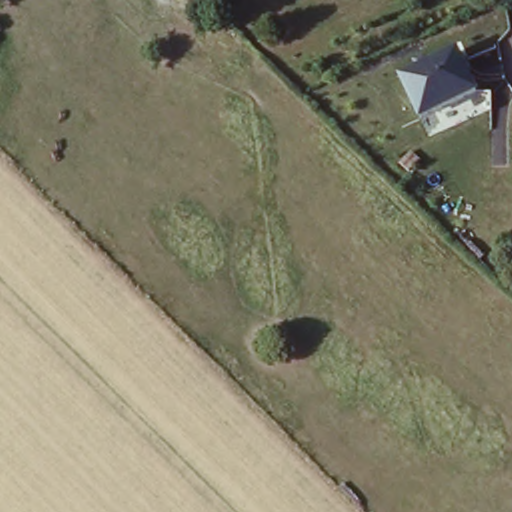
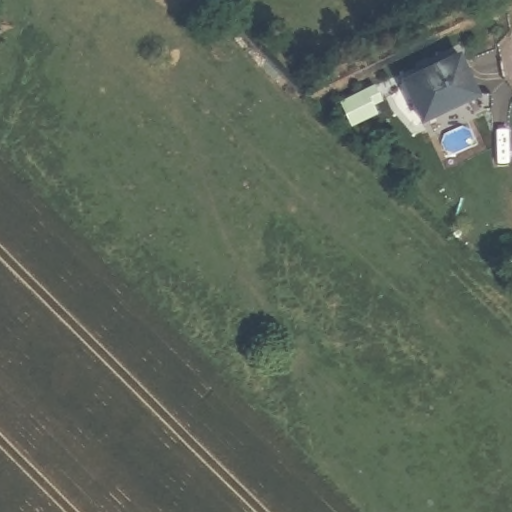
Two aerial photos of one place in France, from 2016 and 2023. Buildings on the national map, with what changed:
unchanged [(398,79),(461,52),(480,95),(419,124),(398,79)]

